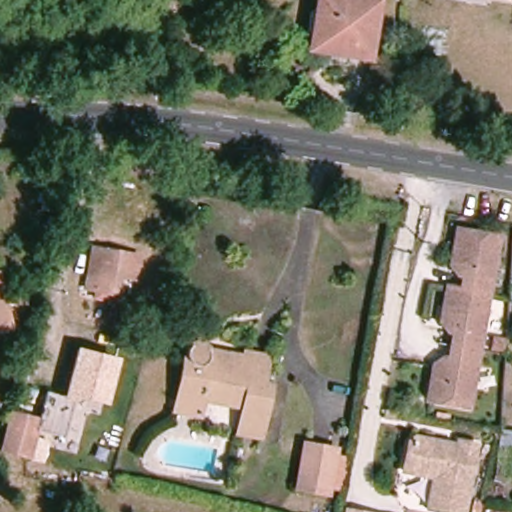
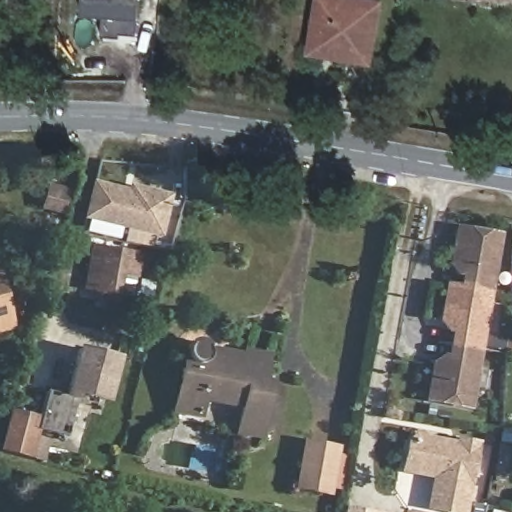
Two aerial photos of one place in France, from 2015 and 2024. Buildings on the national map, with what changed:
new [(100,31),(102,13),(79,10),(81,0),(139,0),(135,35),(100,31)]
unchanged [(320,0),(374,0),(377,1),(368,56),(311,48),(320,0)]
new [(127,184),(171,194),(160,237),(84,219),(92,182),(127,189),(127,184)]
new [(47,187),(67,193),(65,197),(59,217),(39,210),(45,191),(47,187)]
unchanged [(488,297),(460,292),(463,277),(457,276),(451,266),(457,233),(499,241),(488,297)]
unchanged [(101,292),(102,285),(91,283),(98,243),(145,251),(141,274),(127,271),(123,288),(122,288),(121,296),(101,292)]
unchanged [(0,327),(0,276),(12,325),(0,327)]
unchanged [(477,353),(450,348),(452,333),(447,332),(440,323),(447,289),(460,292),(488,297),(477,353)]
unchanged [(258,383),(264,385),(255,437),(234,433),(238,407),(199,400),(195,416),(171,411),(181,352),(182,348),(183,345),(184,343),(186,341),(188,340),(190,339),(193,339),(195,339),(198,340),(200,341),(202,343),(203,344),(204,345),(205,346),(205,348),(205,350),(240,357),(241,352),(262,356),(258,383)]
unchanged [(45,392),(63,397),(75,347),(119,357),(107,404),(79,399),(77,404),(73,403),(63,436),(39,430),(42,418),(39,417),(45,392)]
unchanged [(467,409),(439,404),(425,401),(432,367),(441,361),(447,362),(450,348),(477,353),(467,409)]
unchanged [(0,455),(0,445),(7,409),(42,418),(31,461),(0,455)]
unchanged [(506,483),(494,481),(499,446),(502,430),(512,431),(512,453),(506,483)]
unchanged [(460,512),(445,512),(424,508),(429,478),(399,471),(405,441),(410,437),(452,444),(453,441),(473,445),(460,512)]
unchanged [(343,492),(330,490),(329,497),(294,487),(301,442),(337,448),(336,457),(349,458),(343,492)]
unchanged [(347,510),(359,512),(347,512),(347,510)]

